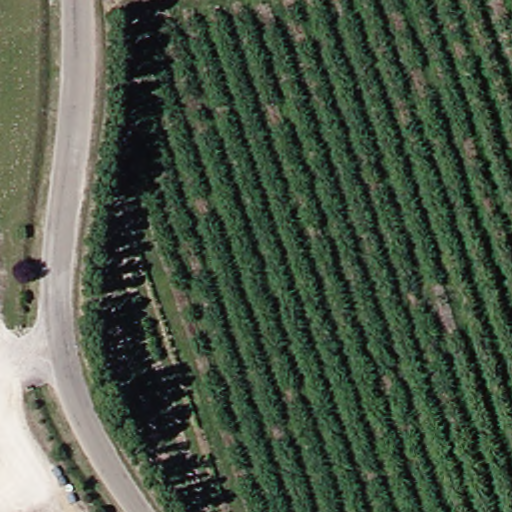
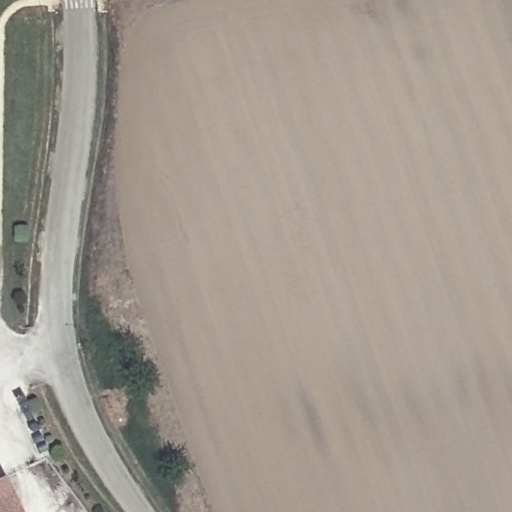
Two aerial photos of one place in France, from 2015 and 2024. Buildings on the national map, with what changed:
new [(21,512),(0,512),(0,480),(5,478),(21,512)]

